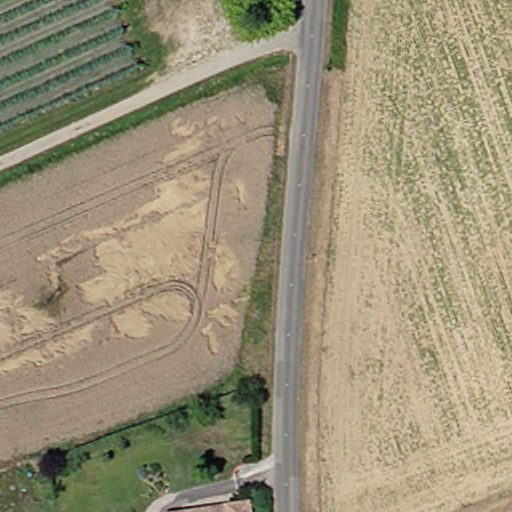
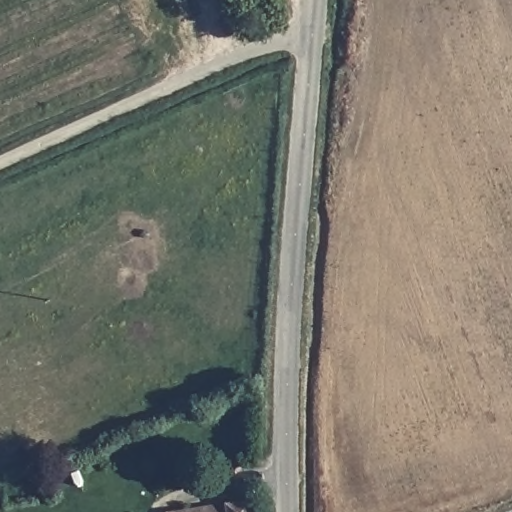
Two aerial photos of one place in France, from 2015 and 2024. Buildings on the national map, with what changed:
unchanged [(276,5),(276,20),(263,19),(263,4),(276,5)]
unchanged [(183,509),(244,499),(247,512),(167,512),(183,509)]

